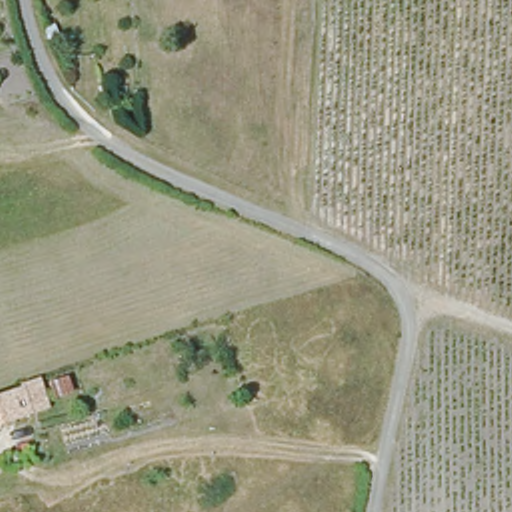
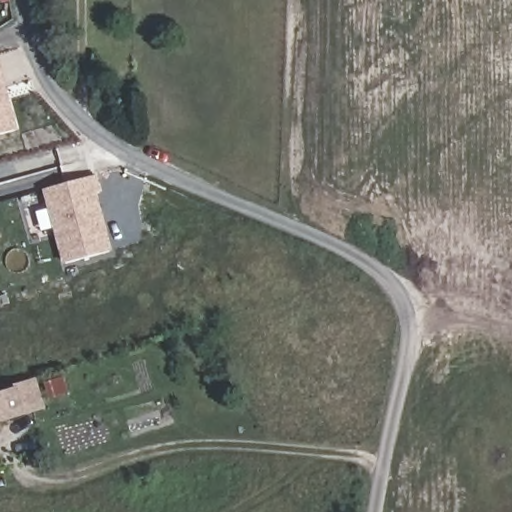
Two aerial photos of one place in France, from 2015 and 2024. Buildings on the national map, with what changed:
new [(19,127),(0,132),(0,58),(19,127)]
new [(95,176),(115,250),(65,263),(45,189),(95,176)]
unchanged [(19,388),(26,421),(0,428),(0,394),(19,388)]

